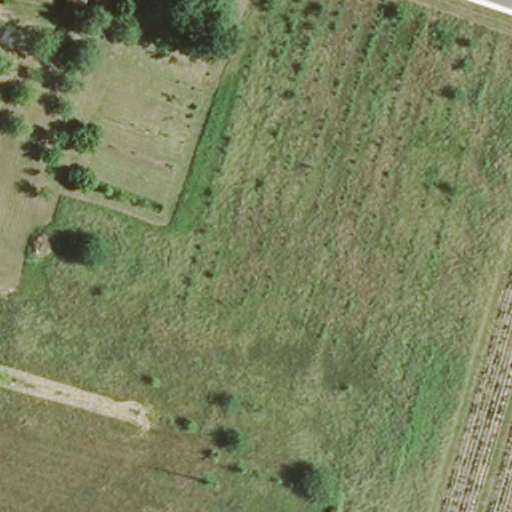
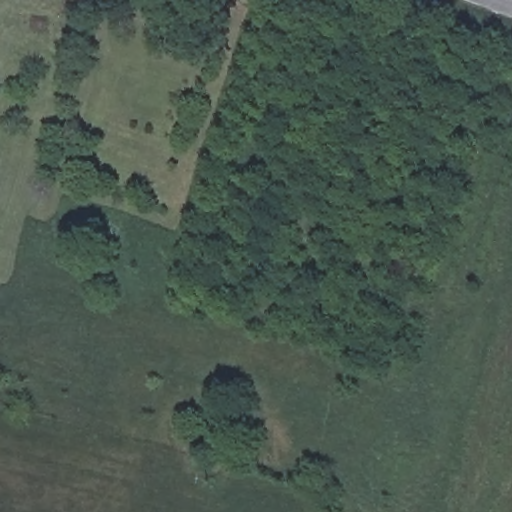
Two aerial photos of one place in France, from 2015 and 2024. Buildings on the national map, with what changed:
unchanged [(60,17),(64,0),(85,0),(79,21),(60,17)]

